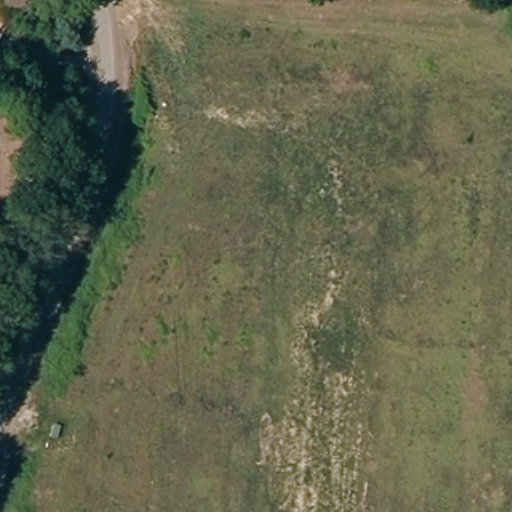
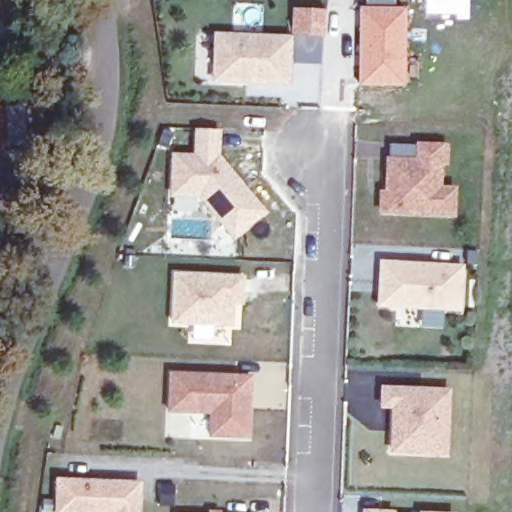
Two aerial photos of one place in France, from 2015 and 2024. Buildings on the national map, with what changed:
new [(326,36),(291,35),(292,7),(327,10),(326,36)]
new [(406,7),(405,84),(360,85),(361,8),(406,7)]
new [(213,32),(291,35),(290,85),(211,80),(213,32)]
new [(0,144),(0,115),(5,115),(5,104),(25,104),(25,142),(0,144)]
new [(221,130),(220,154),(268,212),(232,241),(197,197),(170,195),(171,151),(194,152),(194,130),(221,130)]
new [(380,213),(381,186),(386,186),(386,158),(416,158),(415,142),(448,143),(448,166),(442,166),(442,185),(457,186),(456,217),(380,213)]
new [(377,306),(380,260),(465,265),(462,311),(377,306)]
new [(246,274),(244,305),(234,305),(232,328),(170,325),(173,271),(246,274)]
new [(252,375),(250,440),(209,437),(210,413),(168,412),(169,371),(252,375)]
new [(391,451),(391,408),(380,407),(381,385),(451,388),(449,453),(391,451)]
new [(141,482),(140,512),(56,512),(56,476),(141,482)]
new [(361,508),(395,509),(395,512),(361,512),(361,508)]
new [(419,511),(437,512),(419,512),(419,511)]

